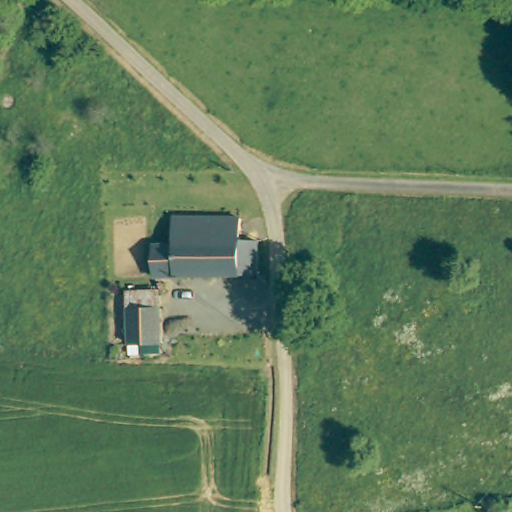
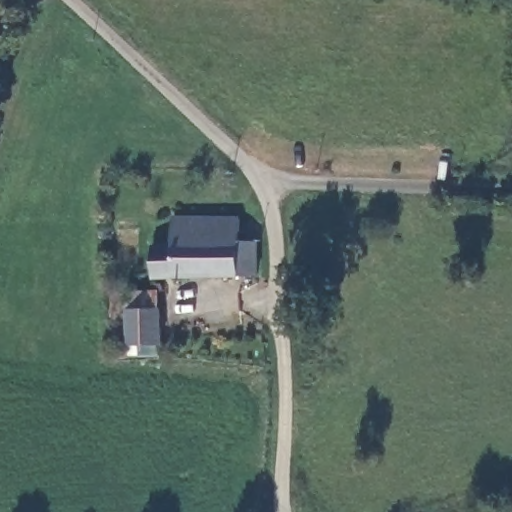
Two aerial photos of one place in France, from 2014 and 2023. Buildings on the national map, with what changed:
unchanged [(145,250),(170,247),(167,225),(235,219),(236,240),(250,239),(252,275),(145,285),(145,250)]
unchanged [(145,303),(172,302),(174,335),(145,337),(145,303)]

